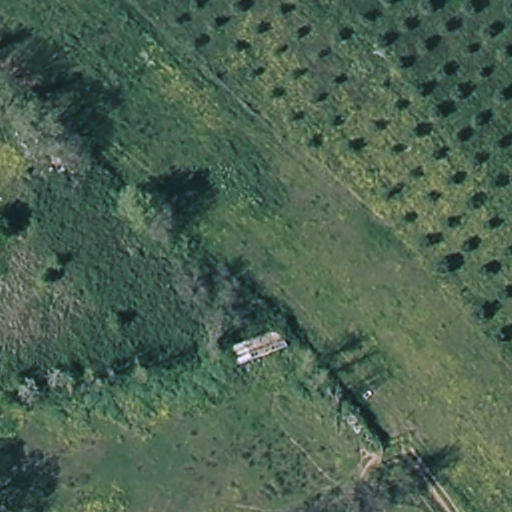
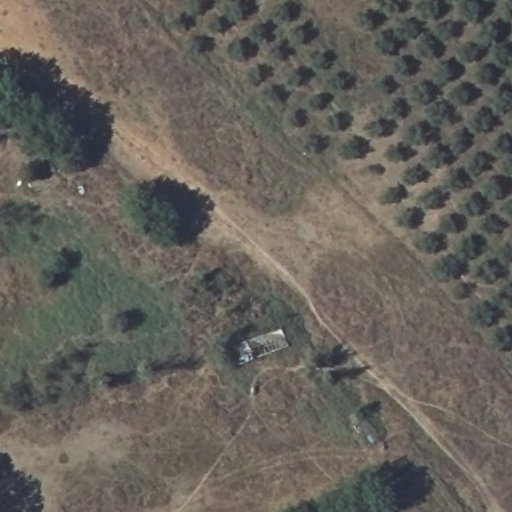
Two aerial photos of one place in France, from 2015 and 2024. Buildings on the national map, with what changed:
unchanged [(280,325),(294,351),(248,366),(233,340),(280,325)]

